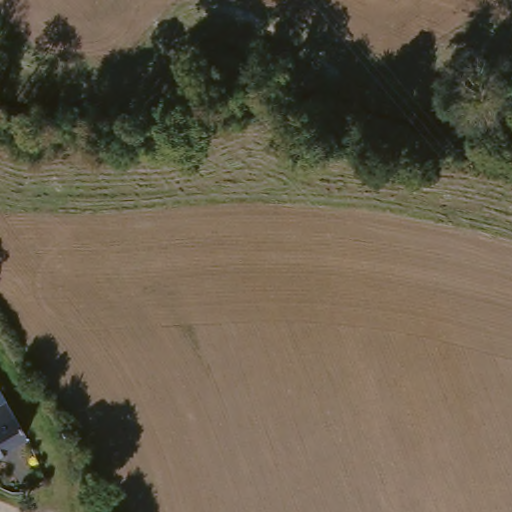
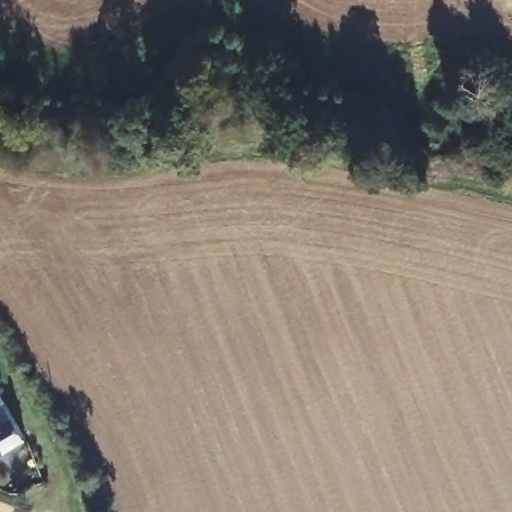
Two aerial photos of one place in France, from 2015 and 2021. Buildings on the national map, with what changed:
unchanged [(0,393),(6,389),(32,439),(0,457),(0,393)]

